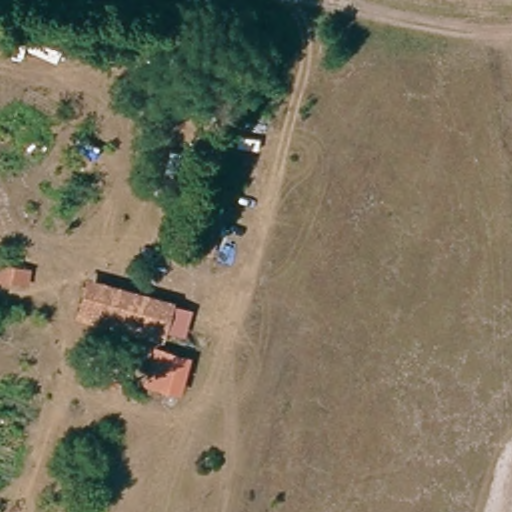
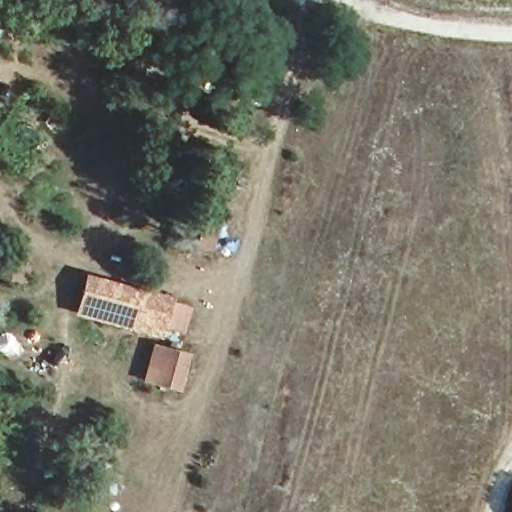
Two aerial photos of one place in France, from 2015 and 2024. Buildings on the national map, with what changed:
unchanged [(23,301),(0,295),(0,261),(31,268),(23,301)]
unchanged [(163,337),(139,330),(83,316),(91,280),(148,294),(173,303),(163,337)]
unchanged [(189,356),(180,393),(141,382),(152,344),(189,356)]

